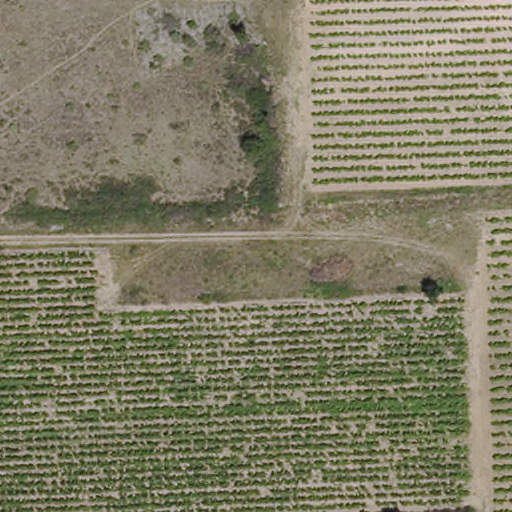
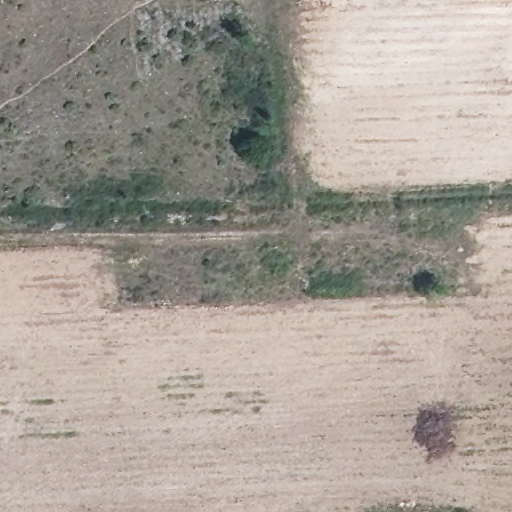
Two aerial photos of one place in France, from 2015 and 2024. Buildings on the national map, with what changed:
[]

